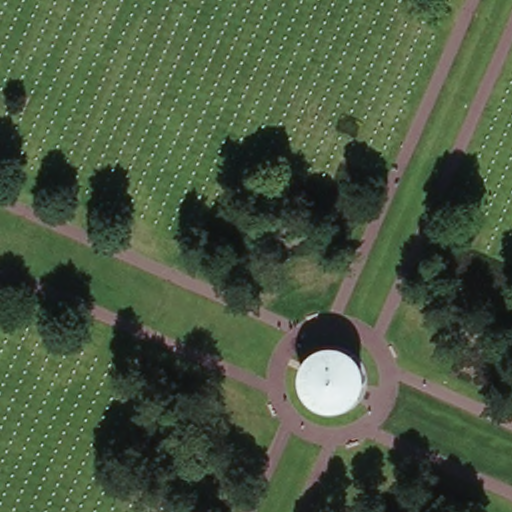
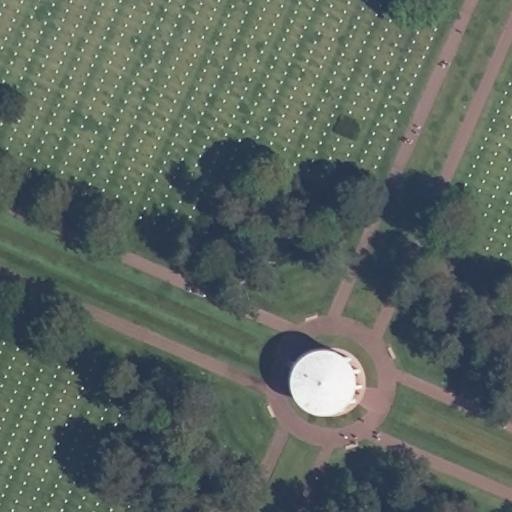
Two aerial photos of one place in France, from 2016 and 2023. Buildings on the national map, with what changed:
unchanged [(318,352),(329,349),(340,350),(350,353),(356,358),(361,367),(363,378),(362,390),(359,403),(352,410),(342,417),(331,418),(322,417),(314,414),(305,406),(299,393),(298,377),(301,367),(308,358),(318,352)]

